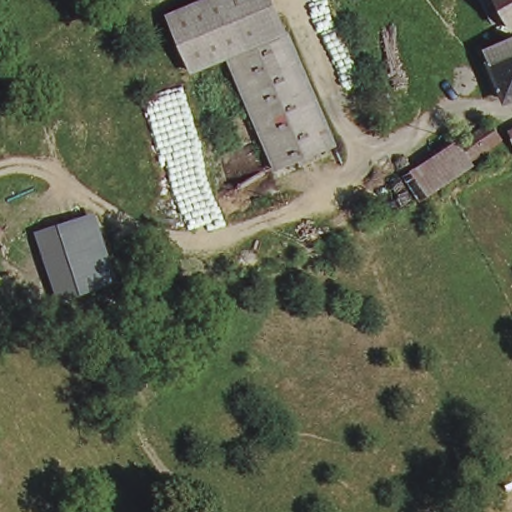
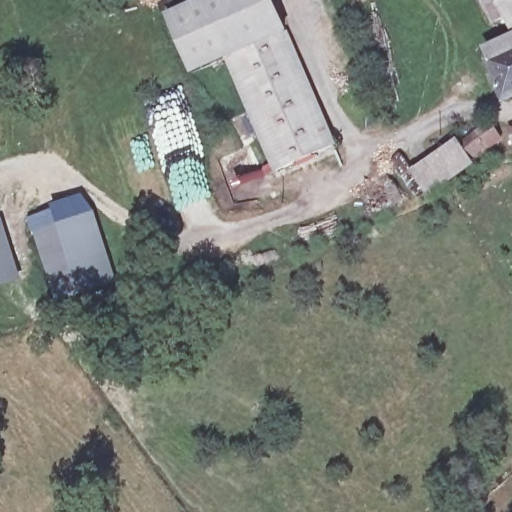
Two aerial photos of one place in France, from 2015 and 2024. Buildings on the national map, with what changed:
unchanged [(165,13),(198,0),(270,0),(328,152),(269,173),(225,56),(187,70),(165,13)]
unchanged [(510,26),(497,0),(512,0),(512,25),(510,26)]
unchanged [(512,36),(512,93),(510,94),(486,50),(512,36)]
unchanged [(460,147),(466,144),(490,130),(498,144),(474,159),(479,170),(422,198),(406,164),(457,140),(460,147)]
unchanged [(93,213),(115,282),(57,299),(34,232),(93,213)]
new [(0,286),(0,218),(2,218),(20,280),(0,286)]
demolished [(7,274),(0,276),(0,251),(3,262),(7,274)]

